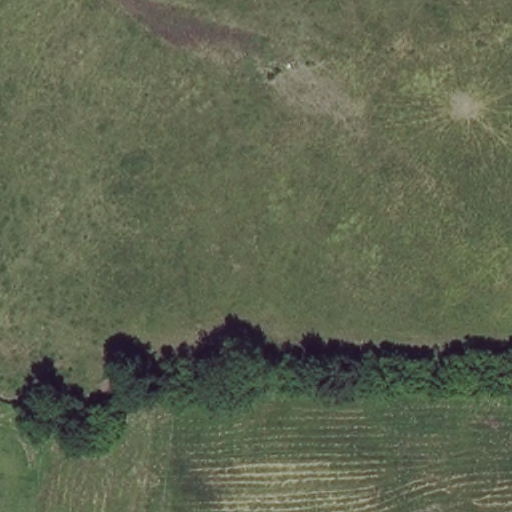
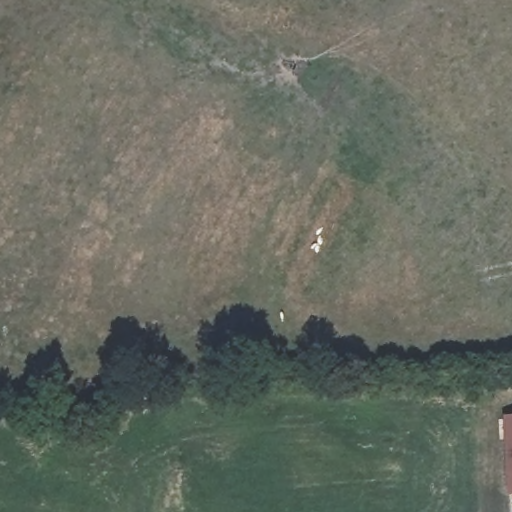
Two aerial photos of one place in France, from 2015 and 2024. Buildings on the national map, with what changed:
new [(503,417),(512,416),(512,496),(507,497),(503,417)]

